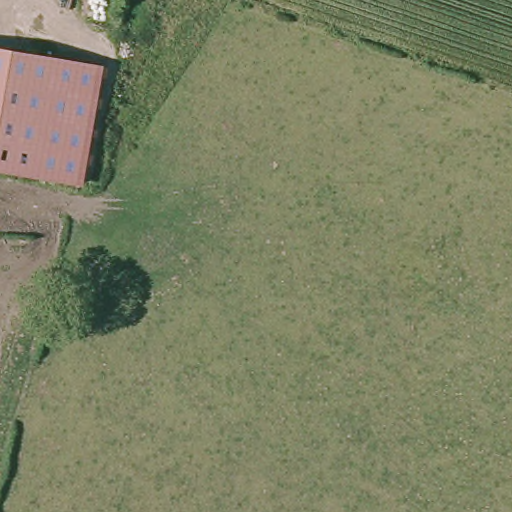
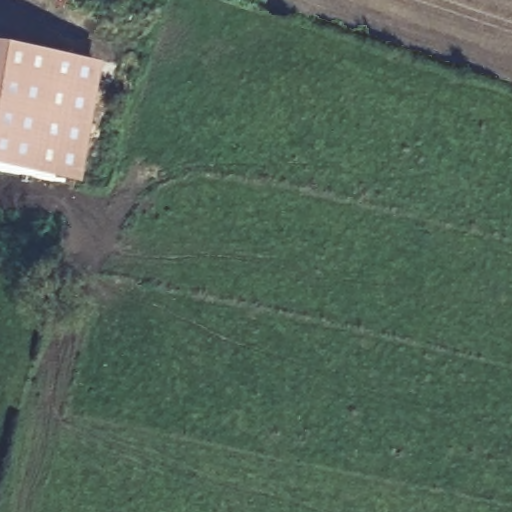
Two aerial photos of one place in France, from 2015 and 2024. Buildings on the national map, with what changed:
unchanged [(102,66),(82,185),(0,170),(0,49),(102,66)]

